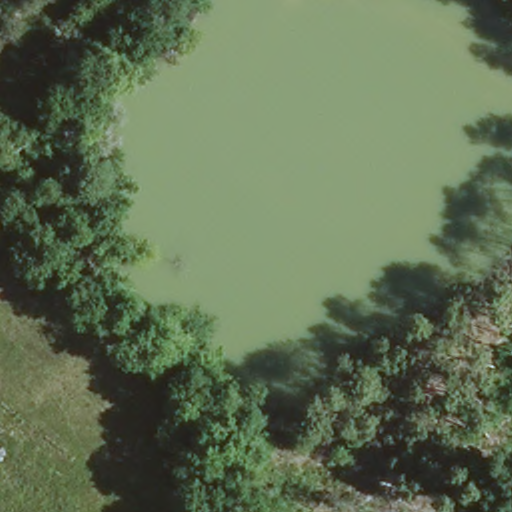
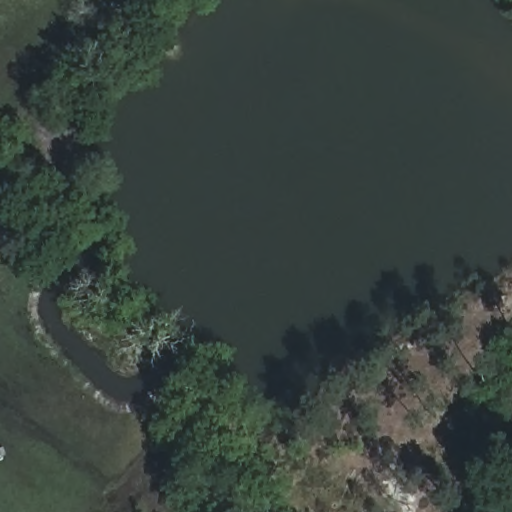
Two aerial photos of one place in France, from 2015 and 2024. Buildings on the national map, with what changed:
[]

